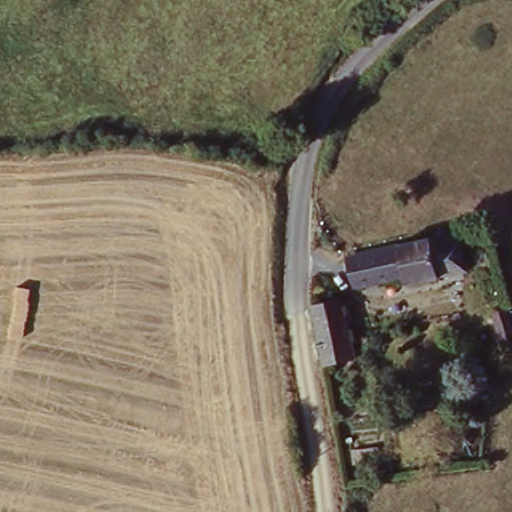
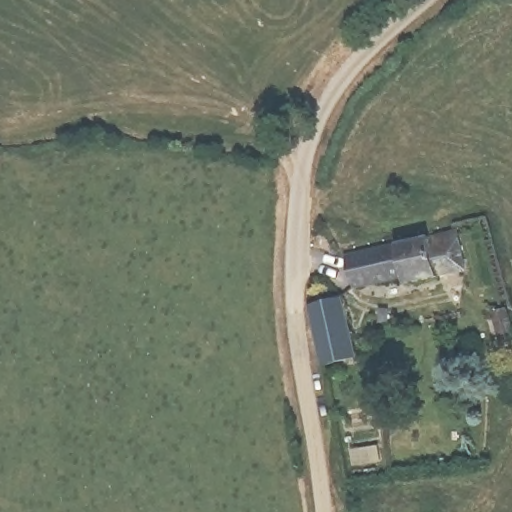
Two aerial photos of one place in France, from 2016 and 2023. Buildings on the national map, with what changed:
unchanged [(452,236),(462,272),(405,287),(403,278),(350,288),(344,263),(452,236)]
unchanged [(334,298),(348,346),(350,360),(322,368),(306,306),(334,298)]
unchanged [(512,333),(512,343),(501,346),(493,312),(506,309),(512,333)]

